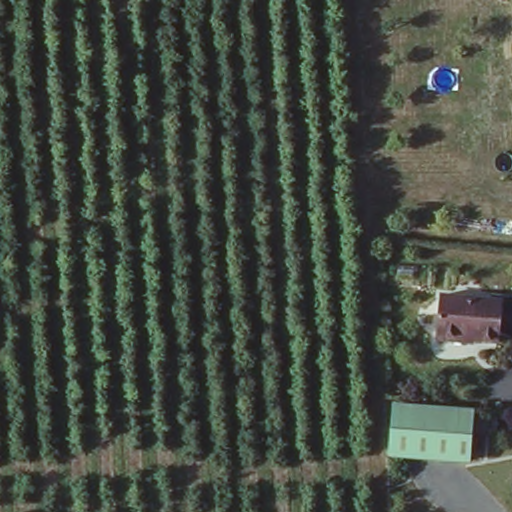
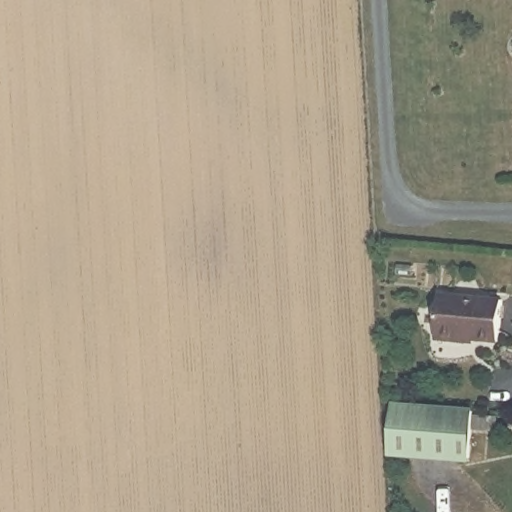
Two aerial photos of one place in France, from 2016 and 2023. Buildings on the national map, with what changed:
unchanged [(502,297),(498,344),(463,341),(462,343),(437,342),(440,292),(502,297)]
unchanged [(394,407),(474,416),(469,467),(389,459),(394,407)]

